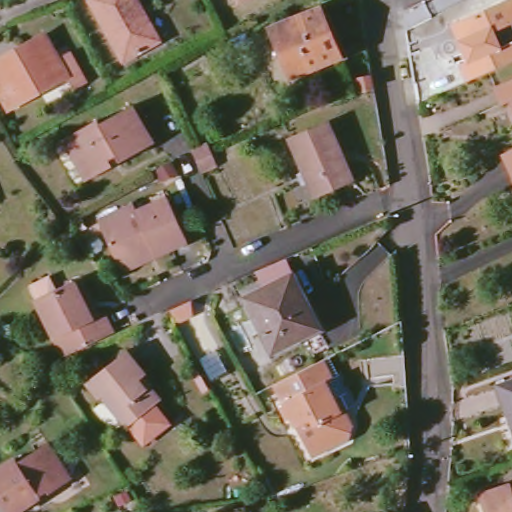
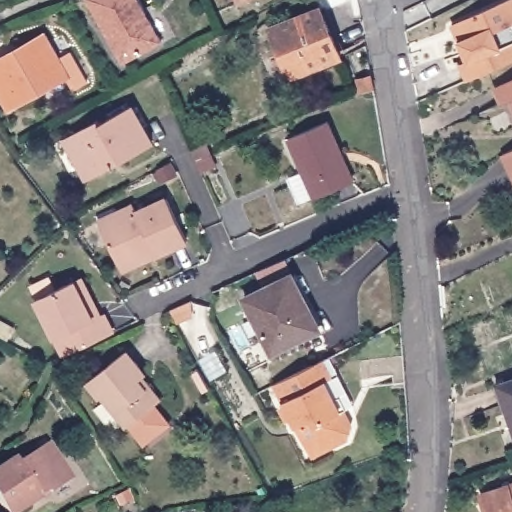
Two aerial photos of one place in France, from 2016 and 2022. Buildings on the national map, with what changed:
unchanged [(136,0),(140,7),(152,1),(170,35),(118,62),(85,0),(136,0)]
unchanged [(235,0),(252,0),(238,7),(235,0)]
unchanged [(458,65),(467,59),(457,40),(460,39),(453,22),(504,0),(512,0),(512,64),(468,85),(458,65)]
unchanged [(270,27),(322,5),(340,55),(290,76),(270,27)]
unchanged [(0,102),(0,56),(38,33),(52,57),(65,50),(82,81),(67,88),(60,75),(3,107),(0,102)]
unchanged [(405,71),(413,68),(415,67),(419,82),(415,83),(407,84),(405,71)]
unchanged [(375,87),(361,90),(358,77),(372,74),(375,87)]
unchanged [(492,87),(512,79),(512,97),(498,102),(492,87)]
unchanged [(87,178),(65,136),(98,119),(100,122),(132,106),(151,146),(120,161),(112,165),(87,178)]
unchanged [(349,182),(317,196),(291,136),(329,119),(342,152),(355,180),(349,182)]
unchanged [(192,151),(207,144),(212,155),(215,164),(200,171),(196,162),(192,151)]
unchanged [(512,149),(512,171),(503,153),(512,149)]
unchanged [(172,163),(177,174),(164,180),(158,170),(172,163)]
unchanged [(119,258),(100,218),(135,202),(140,210),(170,195),(189,240),(158,253),(125,268),(119,258)]
unchanged [(268,356),(242,303),(260,293),(252,277),(282,263),(288,279),(315,332),(268,356)]
unchanged [(35,299),(72,281),(82,276),(101,314),(110,333),(63,356),(35,299)]
unchanged [(170,309),(192,300),(194,315),(177,322),(170,309)]
unchanged [(103,397),(100,399),(87,382),(127,352),(140,366),(142,369),(142,373),(142,375),(162,399),(157,402),(127,425),(103,397)]
unchanged [(313,455),(297,422),(292,424),(285,409),(289,407),(280,388),(328,364),(337,381),(330,385),(345,415),(348,413),(356,429),(352,442),(334,451),(316,460),(313,455)]
unchanged [(512,379),(512,422),(498,384),(512,379)]
unchanged [(0,500),(0,469),(17,459),(18,461),(48,443),(72,479),(50,494),(48,491),(40,496),(41,498),(19,512),(7,512),(0,500)]
unchanged [(476,488),(512,476),(512,512),(484,512),(476,488)]
unchanged [(401,512),(391,512),(401,510),(401,512)]

